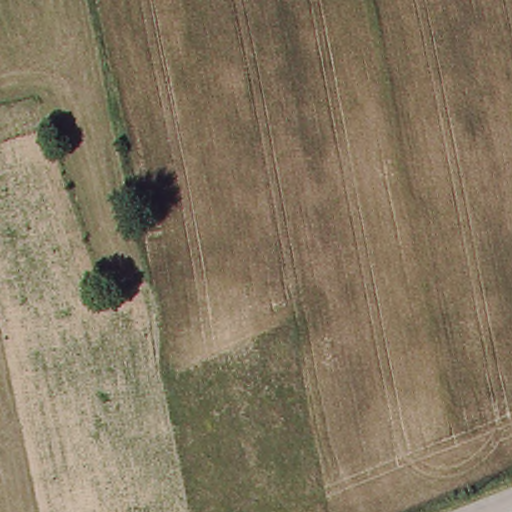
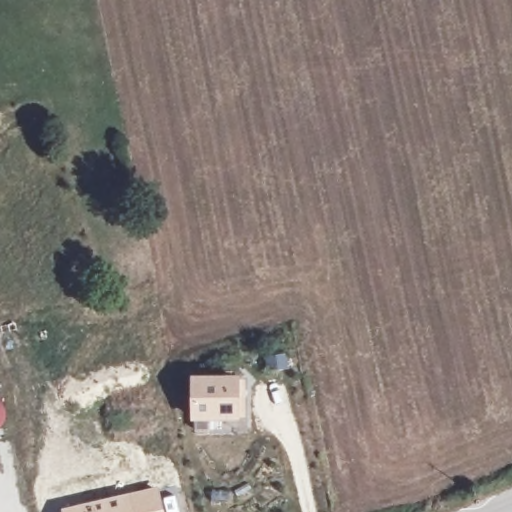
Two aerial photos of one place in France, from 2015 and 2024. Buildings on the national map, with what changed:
new [(269,372),(266,359),(286,356),(288,370),(269,372)]
new [(190,421),(191,377),(240,377),(238,421),(190,421)]
new [(158,485),(164,512),(60,512),(60,508),(158,485)]

